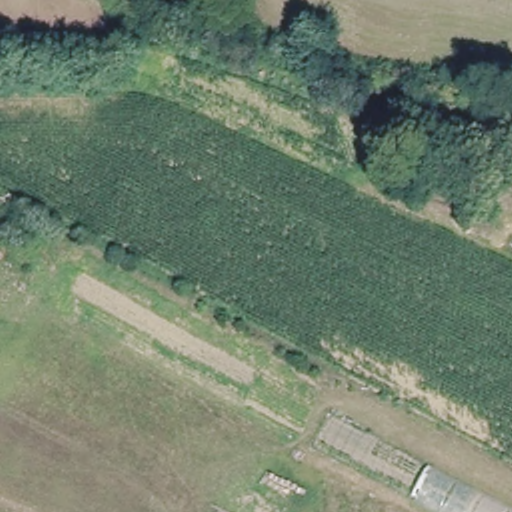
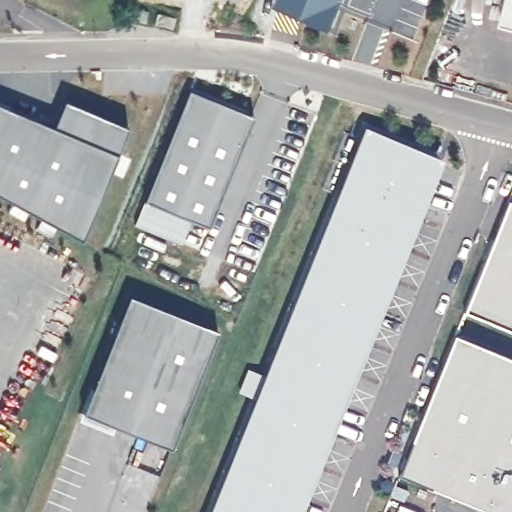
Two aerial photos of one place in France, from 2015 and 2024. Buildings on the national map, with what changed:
new [(274,0),(342,0),(331,27),(273,4),(274,0)]
new [(508,0),(512,0),(512,27),(502,24),(508,0)]
new [(130,6),(149,11),(145,22),(127,17),(130,6)]
new [(158,13),(175,18),(173,29),(154,24),(158,13)]
new [(188,89),(253,115),(223,191),(154,172),(188,89)]
new [(64,99),(128,125),(113,161),(0,130),(0,103),(53,125),(64,99)]
demolished [(493,125),(489,139),(419,121),(423,105),(493,125)]
new [(365,125),(438,155),(404,240),(327,220),(326,220),(365,125)]
new [(80,240),(0,197),(0,130),(113,161),(80,240)]
new [(154,172),(223,191),(209,226),(191,219),(144,200),(143,200),(154,172)]
new [(464,309),(509,199),(512,200),(512,329),(464,309)]
new [(144,200),(191,219),(182,242),(134,224),(144,200)]
new [(327,220),(404,240),(347,382),(277,345),(327,220)]
new [(129,294),(217,328),(170,446),(83,412),(129,294)]
new [(501,512),(399,472),(455,334),(512,357),(512,512),(501,512)]
new [(240,391),(249,370),(264,376),(277,345),(347,382),(294,512),(209,512),(255,397),(240,391)]
new [(384,512),(383,512),(383,511),(384,512)]

